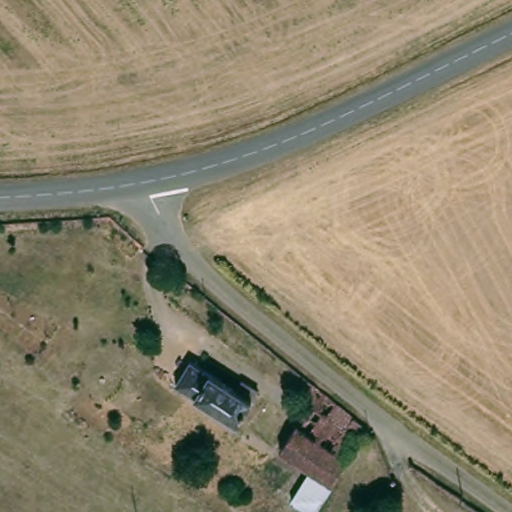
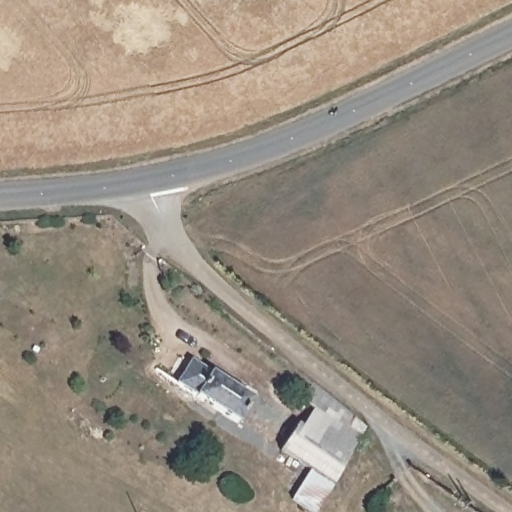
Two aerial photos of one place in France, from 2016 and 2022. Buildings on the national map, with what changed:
unchanged [(231,392),(241,379),(258,392),(234,426),(173,382),(187,362),(231,392)]
unchanged [(327,421),(341,431),(350,415),(358,422),(313,512),(291,512),(285,507),(308,473),(275,451),(306,407),(297,400),(310,382),(338,405),(327,421)]
unchanged [(373,512),(371,512),(372,511),(373,512)]

